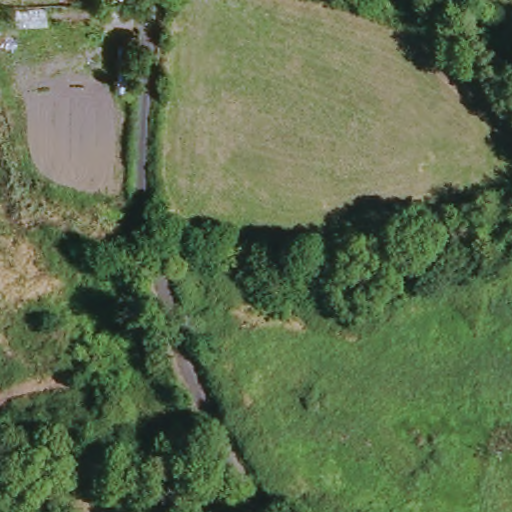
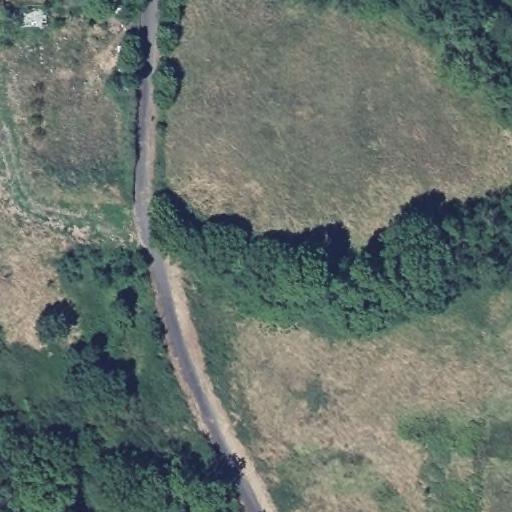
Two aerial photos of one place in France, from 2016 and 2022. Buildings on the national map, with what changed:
unchanged [(116,79),(117,61),(119,61),(120,38),(134,38),(134,80),(116,79)]

